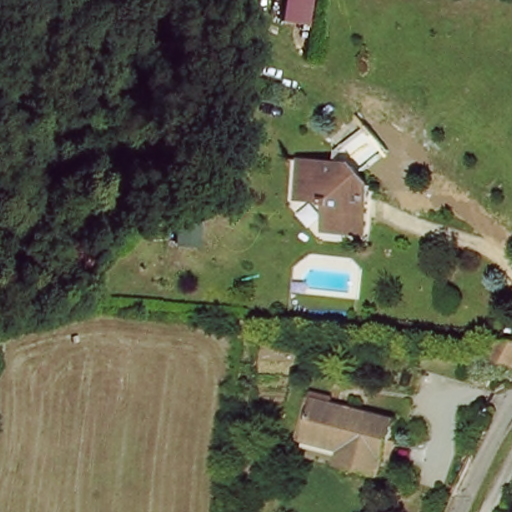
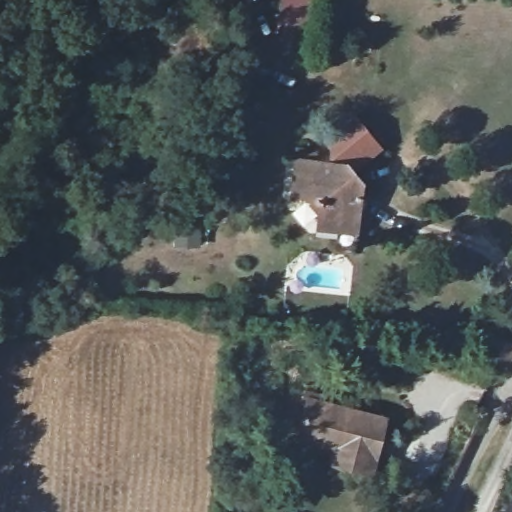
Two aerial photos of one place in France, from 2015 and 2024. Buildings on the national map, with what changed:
unchanged [(322,26),(281,23),(281,0),(325,0),(322,26)]
unchanged [(316,222),(317,208),(315,208),(313,207),(313,205),(300,204),(290,203),(292,185),(295,163),(341,167),(359,188),(358,203),(354,203),(354,215),(356,215),(354,236),(335,234),(315,231),(316,222)]
unchanged [(487,344),(512,346),(499,373),(474,369),(487,344)]
unchanged [(300,442),(312,398),(388,421),(370,478),(332,467),(335,452),(300,442)]

